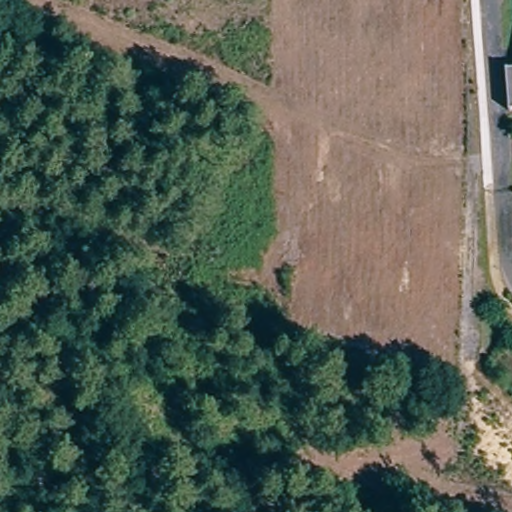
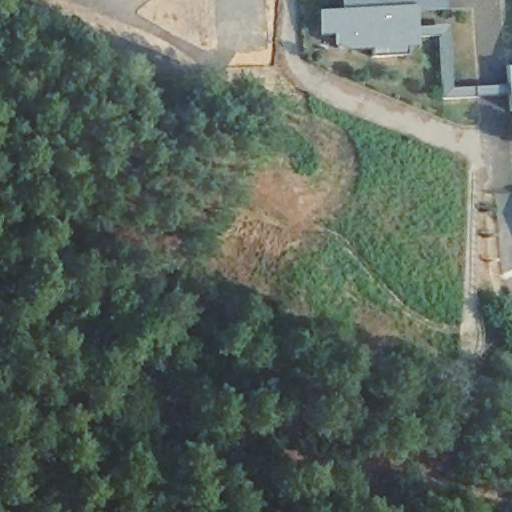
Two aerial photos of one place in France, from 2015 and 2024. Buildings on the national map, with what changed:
new [(446,8),(417,10),(418,46),(408,48),(408,52),(373,55),(372,47),(346,50),(333,42),(334,34),(318,35),(317,12),(342,9),(341,0),(445,0),(446,8)]
unchanged [(501,57),(512,57),(512,99),(504,100),(501,57)]

